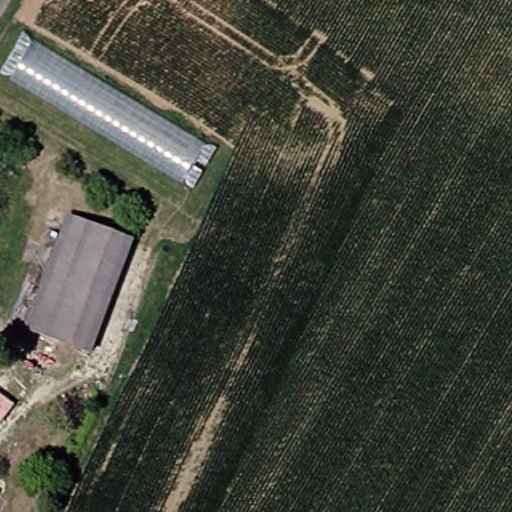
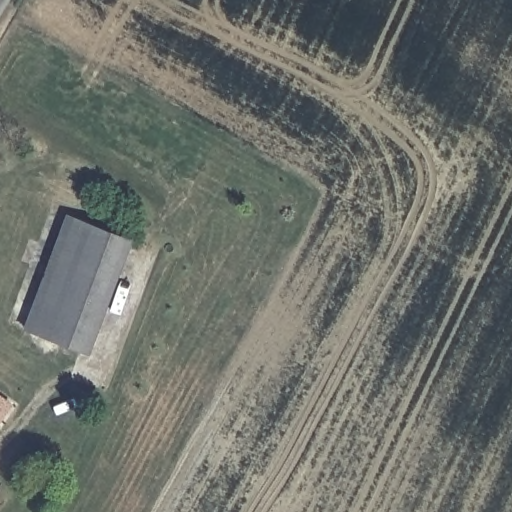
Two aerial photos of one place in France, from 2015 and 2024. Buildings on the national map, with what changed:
demolished [(32,36),(206,144),(183,182),(8,79),(32,36)]
unchanged [(142,233),(101,346),(45,328),(77,212),(142,233)]
unchanged [(16,392),(0,414),(0,380),(16,392)]
unchanged [(1,485),(0,487),(0,484),(1,485)]

